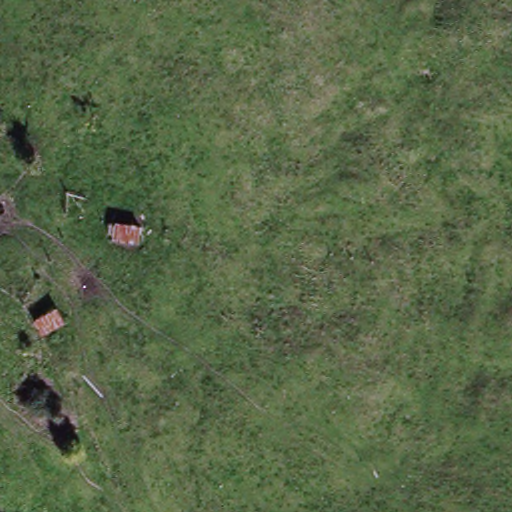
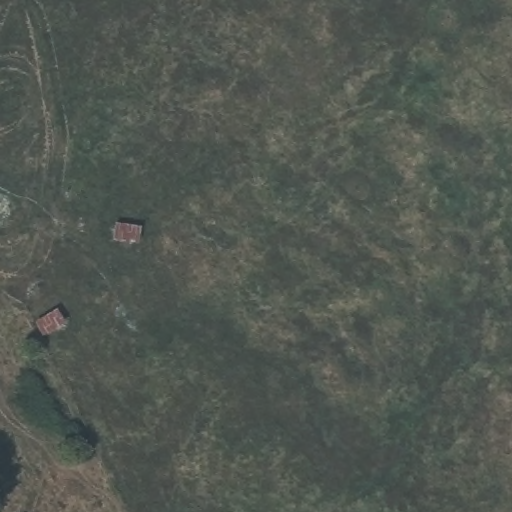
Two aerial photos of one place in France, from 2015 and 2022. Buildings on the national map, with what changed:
unchanged [(108,224),(138,230),(134,249),(107,241),(108,224)]
unchanged [(60,327),(37,340),(26,322),(51,312),(60,327)]

